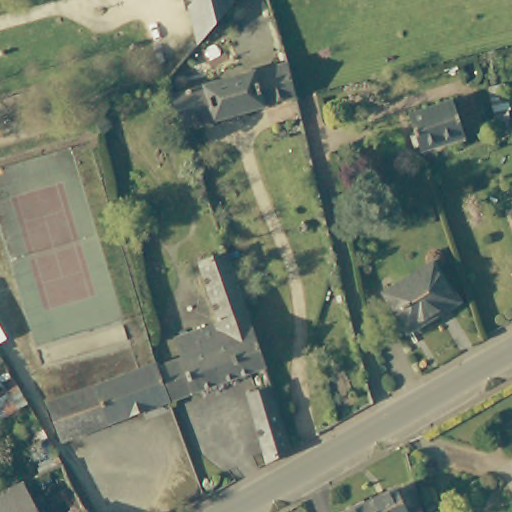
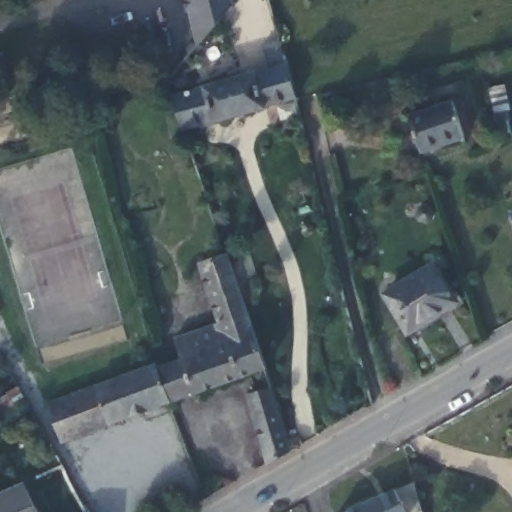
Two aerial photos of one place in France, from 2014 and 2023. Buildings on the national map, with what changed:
unchanged [(191,0),(225,0),(199,32),(191,0)]
unchanged [(256,62),(256,64),(288,54),(298,87),(213,113),(213,112),(185,120),(173,85),(256,62)]
unchanged [(453,97),(465,132),(423,147),(410,112),(453,97)]
unchanged [(511,207),(512,207),(512,212),(511,207)]
unchanged [(217,318),(197,260),(223,251),(261,363),(259,363),(169,397),(156,363),(179,355),(172,335),(217,318)]
unchanged [(456,300),(409,331),(386,295),(434,264),(456,300)]
unchanged [(151,360),(166,397),(59,437),(46,400),(151,360)]
unchanged [(266,378),(287,441),(262,455),(244,384),(266,378)]
unchanged [(0,419),(0,400),(20,388),(28,403),(0,419)]
unchanged [(392,485),(409,477),(416,506),(403,512),(402,512),(333,512),(391,483),(392,485)]
unchanged [(0,486),(18,478),(22,487),(35,512),(0,512),(0,486)]
unchanged [(85,506),(88,512),(74,512),(85,506)]
unchanged [(403,512),(416,506),(417,512),(403,512)]

